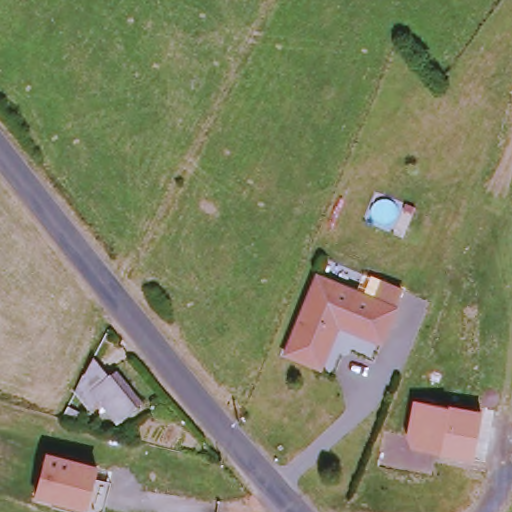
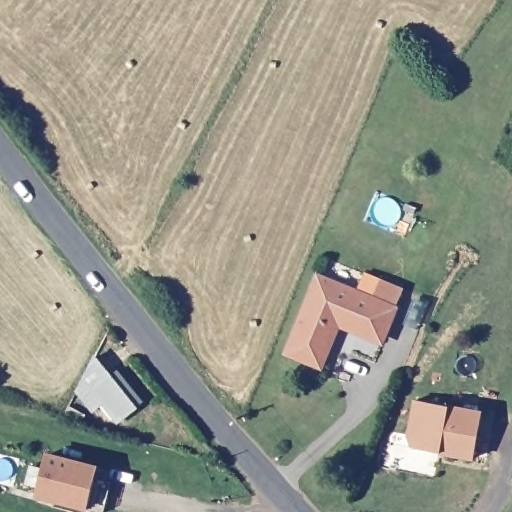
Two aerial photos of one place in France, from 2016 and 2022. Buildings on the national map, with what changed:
unchanged [(338,333),(322,372),(290,359),(322,279),(379,302),(385,286),(406,294),(400,311),(401,312),(388,344),(350,328),(338,333)]
unchanged [(141,403),(134,409),(118,422),(85,379),(95,359),(110,378),(117,372),(141,403)]
unchanged [(95,416),(78,394),(85,379),(105,405),(95,416)]
unchanged [(449,408),(450,405),(481,411),(473,459),(440,453),(412,449),(406,439),(412,401),(449,408)]
unchanged [(101,466),(88,512),(82,512),(35,499),(48,452),(101,466)]

